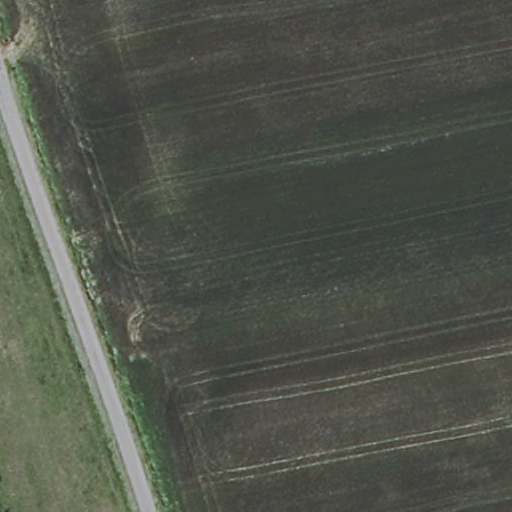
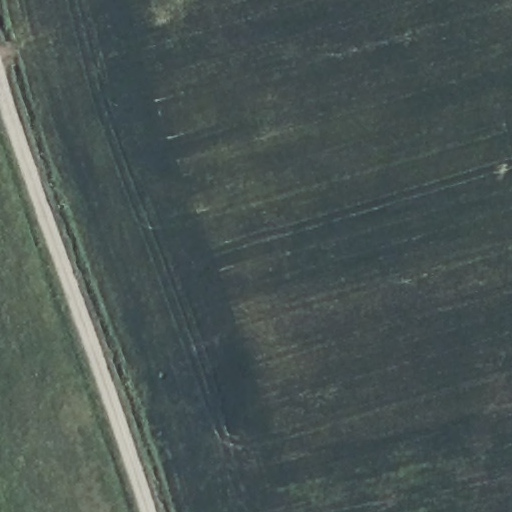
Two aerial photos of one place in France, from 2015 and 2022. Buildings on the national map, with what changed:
[]

